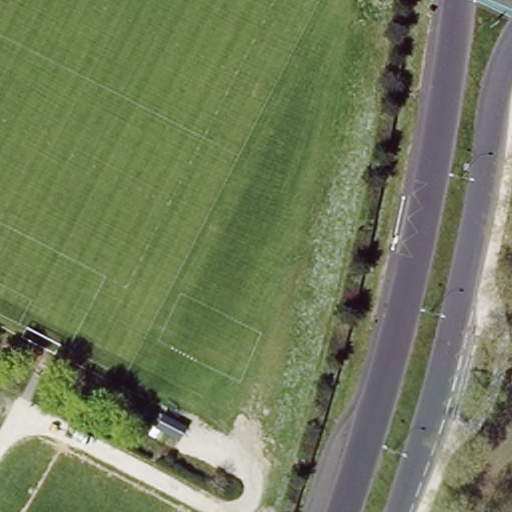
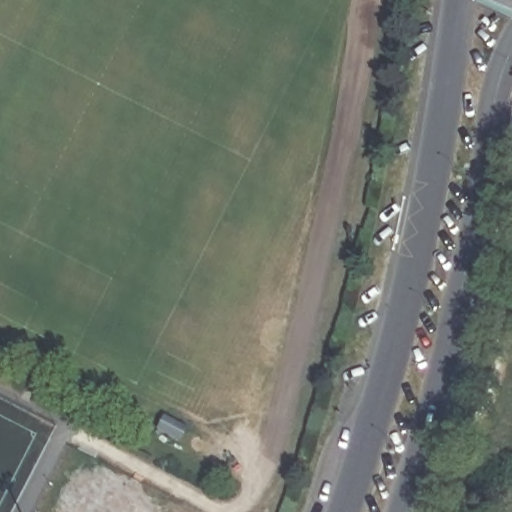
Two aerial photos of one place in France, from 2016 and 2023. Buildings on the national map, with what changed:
[]

